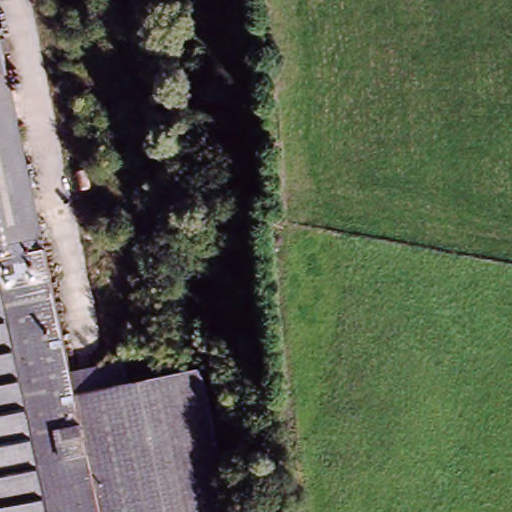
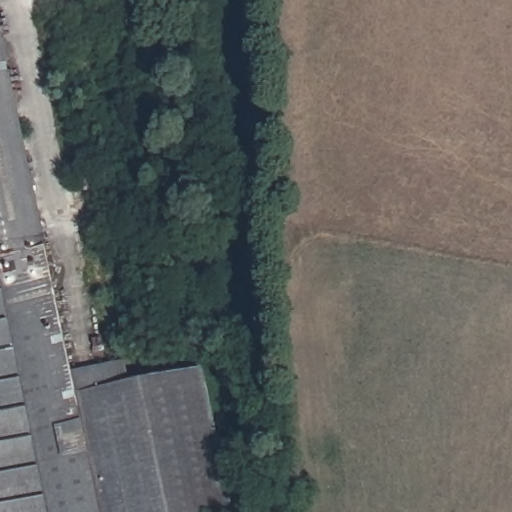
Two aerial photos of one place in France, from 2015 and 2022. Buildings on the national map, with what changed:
unchanged [(0,4),(52,254),(43,256),(0,73),(0,4)]
unchanged [(0,73),(43,256),(105,512),(0,512),(0,73)]
unchanged [(76,374),(131,364),(135,387),(188,376),(217,512),(105,512),(43,256),(52,254),(76,374)]

